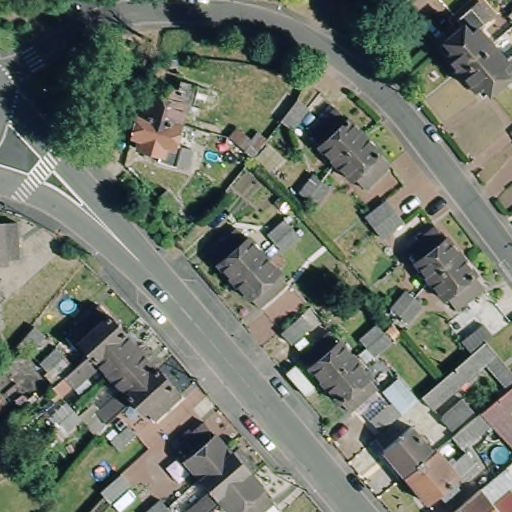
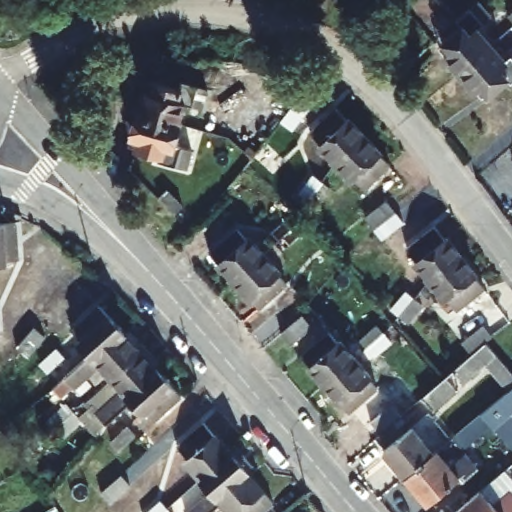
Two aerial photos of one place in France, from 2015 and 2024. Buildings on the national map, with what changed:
unchanged [(459,80),(444,62),(451,57),(443,48),(459,34),(456,29),(477,10),(489,25),(475,38),(489,55),(459,80)]
unchanged [(511,20),(512,19),(512,22),(511,20)]
unchanged [(489,55),(501,69),(512,61),(512,89),(508,92),(504,86),(487,100),(479,91),(473,97),(459,80),(489,55)]
unchanged [(141,115),(136,114),(143,92),(151,95),(154,84),(177,91),(179,83),(208,92),(201,113),(185,108),(179,127),(141,115)]
unchanged [(254,155),(248,164),(221,152),(176,137),(172,149),(189,154),(184,172),(156,164),(158,156),(136,149),(138,139),(130,137),(136,114),(141,115),(179,127),(191,131),(225,142),(239,148),(254,155)]
unchanged [(343,169),(342,169),(326,152),(329,149),(319,138),(345,115),(355,125),(357,124),(373,141),(343,169)]
unchanged [(388,157),(387,159),(398,171),(371,194),(362,184),(359,187),(342,169),(343,169),(373,141),(388,157)]
unchanged [(299,190),(316,175),(322,181),(324,183),(331,191),(314,206),(306,198),(299,190)]
unchanged [(166,192),(182,209),(175,216),(158,200),(166,192)]
unchanged [(376,228),(366,216),(389,199),(398,211),(401,216),(407,223),(384,239),(381,235),(376,228)]
unchanged [(25,254),(12,255),(11,258),(0,259),(0,219),(21,217),(25,254)]
unchanged [(296,230),(303,238),(286,253),(279,245),(276,242),(273,237),(289,222),(296,230)]
unchanged [(436,289),(422,271),(425,268),(415,255),(443,233),(452,246),(454,245),(469,264),(436,289)]
unchanged [(234,288),(221,272),(223,270),(213,259),(243,235),(252,245),(254,243),(269,259),(234,288)]
unchanged [(269,259),(282,276),(281,277),(292,290),(261,316),(253,305),(250,307),(234,288),(269,259)]
unchanged [(469,264),(484,283),(481,285),(492,297),(464,319),(453,305),(451,307),(436,289),(469,264)]
unchanged [(422,308),(404,322),(402,320),(397,314),(391,306),(409,291),(415,299),(417,302),(422,308)]
unchanged [(0,310),(4,309),(6,332),(1,332),(0,333),(0,310)]
unchanged [(108,366),(105,364),(94,352),(97,350),(88,340),(115,316),(122,323),(123,321),(138,339),(108,366)]
unchanged [(303,318),(312,328),(293,345),(284,335),(303,318)]
unchanged [(462,339),(484,322),(493,333),(471,350),(462,339)]
unchanged [(377,356),(370,348),(364,340),(381,325),(388,333),(394,341),(377,356)]
unchanged [(331,386),(316,370),(319,368),(309,357),(338,332),(347,343),(349,342),(364,358),(331,386)]
unchanged [(112,422),(109,419),(110,419),(125,405),(124,405),(128,400),(134,396),(123,383),(114,374),(89,398),(79,388),(93,375),(105,364),(108,366),(138,339),(150,352),(156,348),(158,351),(163,356),(158,360),(171,373),(186,391),(185,392),(195,404),(168,429),(156,418),(155,419),(145,408),(133,419),(119,432),(112,422)]
unchanged [(446,377),(490,341),(512,370),(512,389),(508,392),(487,366),(433,411),(422,397),(446,377)]
unchanged [(45,369),(62,353),(68,361),(51,377),(45,369)]
unchanged [(364,358),(379,375),(376,377),(385,388),(356,412),(348,401),(345,403),(331,386),(364,358)]
unchanged [(493,424),(483,413),(508,392),(512,389),(512,447),(493,424)]
unchanged [(59,428),(53,421),(70,405),(77,412),(78,413),(84,420),(66,437),(63,432),(59,428)]
unchanged [(393,411),(396,414),(402,409),(408,416),(376,443),(367,433),(393,411)]
unchanged [(406,475),(435,451),(483,413),(493,424),(464,447),(481,466),(464,480),(461,476),(429,503),(406,475)]
unchanged [(218,455),(222,459),(204,474),(189,455),(192,453),(182,440),(208,419),(218,431),(219,430),(231,445),(218,455)]
unchanged [(406,475),(384,449),(414,425),(435,451),(406,475)]
unchanged [(133,430),(138,437),(121,453),(115,445),(133,430)]
unchanged [(241,444),(235,449),(249,466),(238,476),(237,476),(241,482),(223,496),(205,512),(191,512),(188,508),(214,486),(204,474),(222,459),(218,455),(231,445),(238,439),(241,444)]
unchanged [(237,476),(238,476),(249,466),(256,461),(259,466),(253,471),(266,486),(264,487),(275,498),(259,512),(241,512),(238,509),(235,511),(223,496),(241,482),(237,476)]
unchanged [(465,512),(483,497),(493,509),(509,497),(512,501),(512,512),(465,512)]
unchanged [(145,512),(162,499),(168,507),(172,512),(145,512)]

